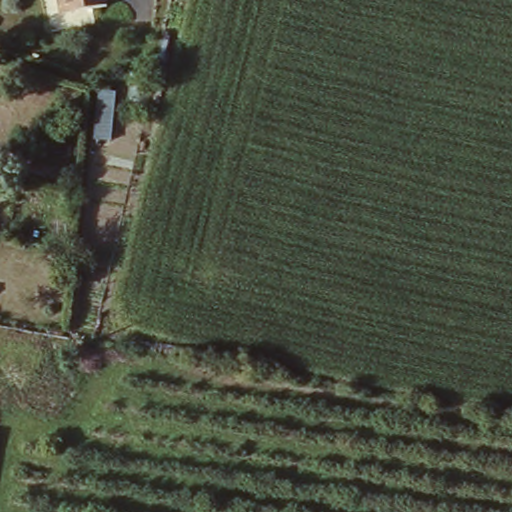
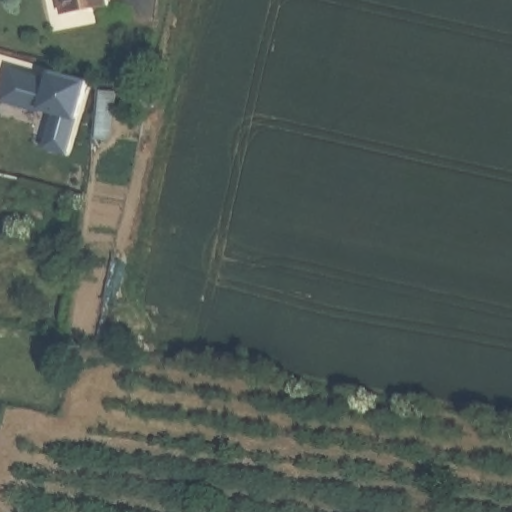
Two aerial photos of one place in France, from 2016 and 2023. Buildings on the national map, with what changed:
unchanged [(106,8),(65,17),(62,1),(66,0),(105,0),(106,8)]
new [(36,151),(47,114),(0,102),(0,93),(6,69),(46,80),(49,72),(86,83),(65,160),(36,151)]
unchanged [(25,240),(23,248),(10,245),(11,236),(25,240)]

